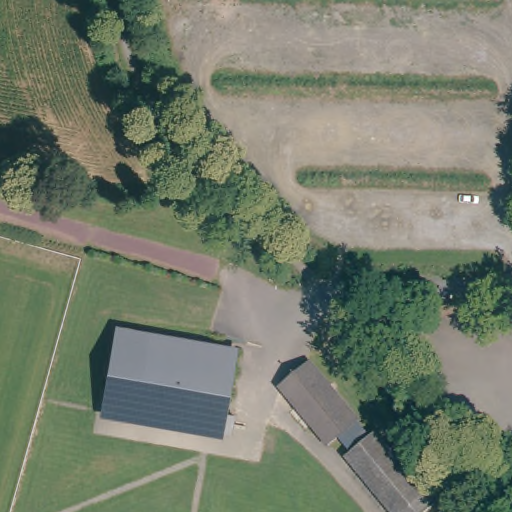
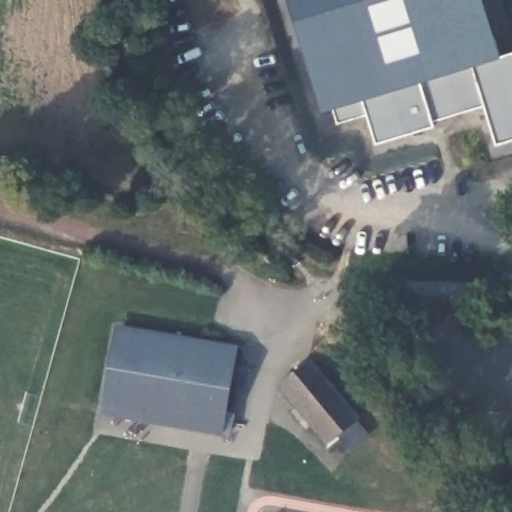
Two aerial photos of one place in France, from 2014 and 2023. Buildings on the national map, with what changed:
new [(495,145),(482,104),(431,120),(432,125),(375,143),(367,115),(336,124),(332,108),(320,112),(286,0),(481,0),(498,55),(512,51),(512,140),(495,145)]
unchanged [(237,351),(225,434),(146,422),(147,418),(110,412),(121,334),(237,351)]
unchanged [(310,360),(357,417),(327,442),(280,385),(310,360)]
demolished [(430,501),(417,512),(392,512),(344,452),(372,429),(430,501)]

